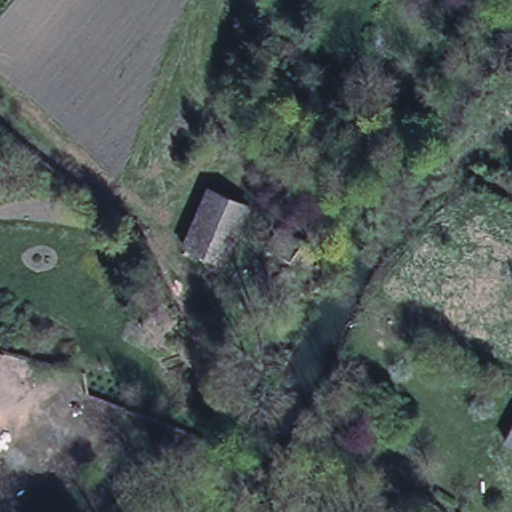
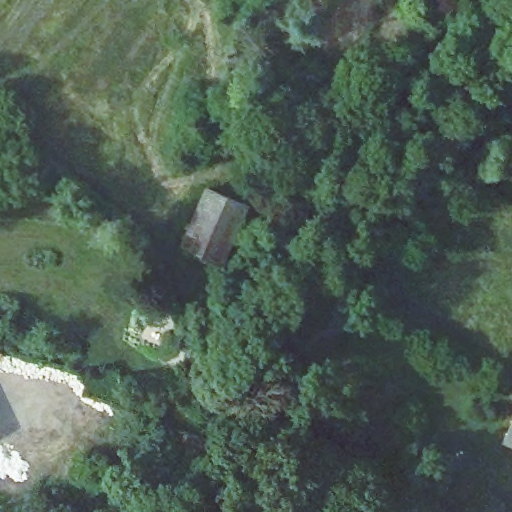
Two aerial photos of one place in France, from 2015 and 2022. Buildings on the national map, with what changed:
unchanged [(253,204),(228,262),(188,245),(213,186),(253,204)]
unchanged [(0,362),(0,352),(10,355),(0,362)]
unchanged [(512,445),(509,443),(512,437),(512,445)]

